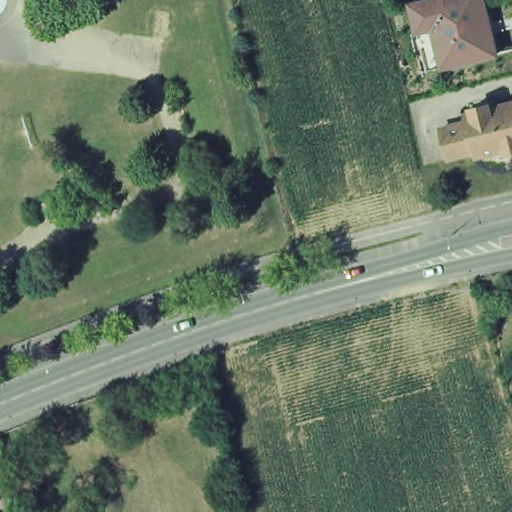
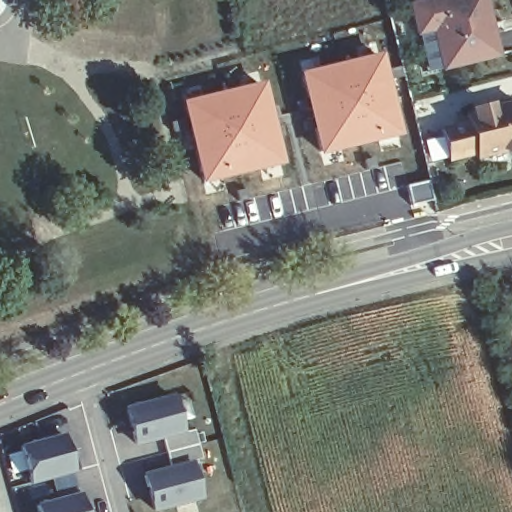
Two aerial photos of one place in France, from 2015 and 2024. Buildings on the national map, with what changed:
unchanged [(417,34),(411,7),(440,0),(483,0),(487,17),(484,18),(489,35),(492,34),(497,56),(444,69),(429,74),(417,34)]
new [(381,52),(401,136),(319,155),(297,71),(381,52)]
new [(261,80),(284,164),(200,184),(179,99),(261,80)]
unchanged [(512,124),(512,153),(501,156),(494,151),(468,159),(466,154),(440,160),(432,131),(458,124),(457,117),(507,105),(512,124)]
new [(164,439),(133,447),(123,408),(172,394),(184,433),(195,430),(202,458),(192,461),(202,500),(157,512),(151,512),(141,473),(170,466),(166,452),(164,439)]
new [(74,471),(29,485),(18,447),(62,434),(66,441),(71,440),(75,452),(72,453),(77,469),(74,471)]
new [(80,493),(82,500),(85,499),(87,512),(37,512),(35,505),(80,493)]

